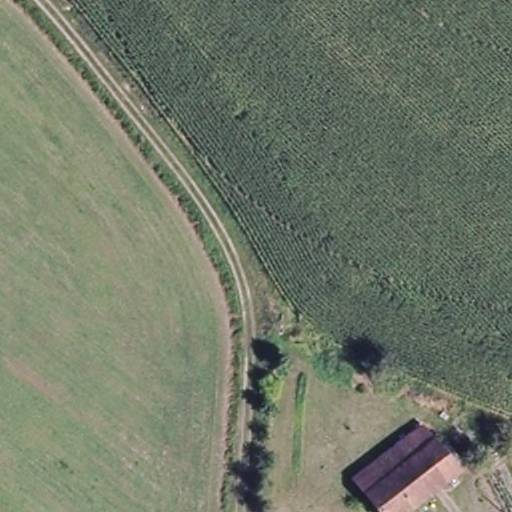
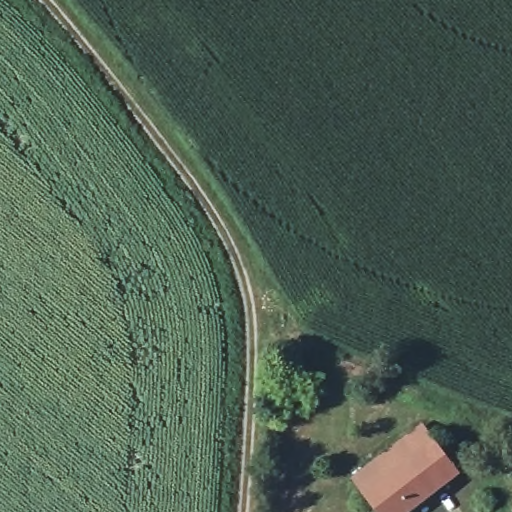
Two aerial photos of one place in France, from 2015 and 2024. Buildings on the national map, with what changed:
unchanged [(418,512),(383,512),(358,481),(424,429),(462,475),(418,512)]

